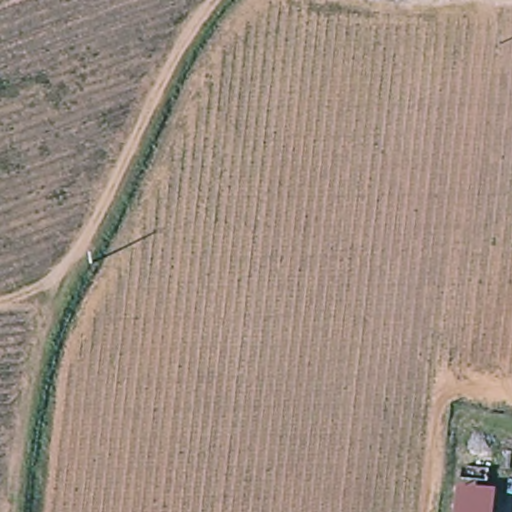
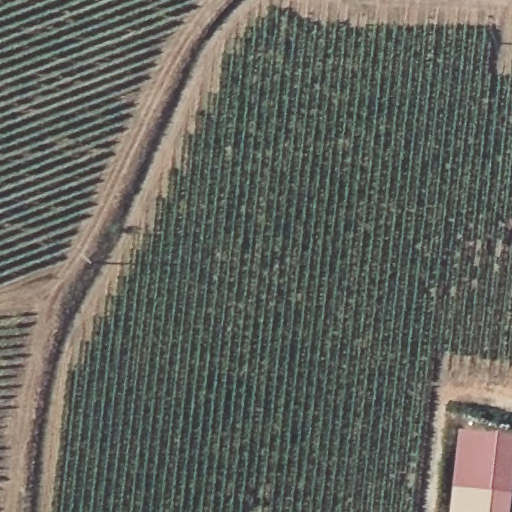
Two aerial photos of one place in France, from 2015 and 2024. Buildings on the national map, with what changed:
new [(512,436),(512,512),(492,512),(494,492),(458,488),(461,432),(512,436)]
unchanged [(492,512),(455,512),(458,488),(494,492),(492,512)]

